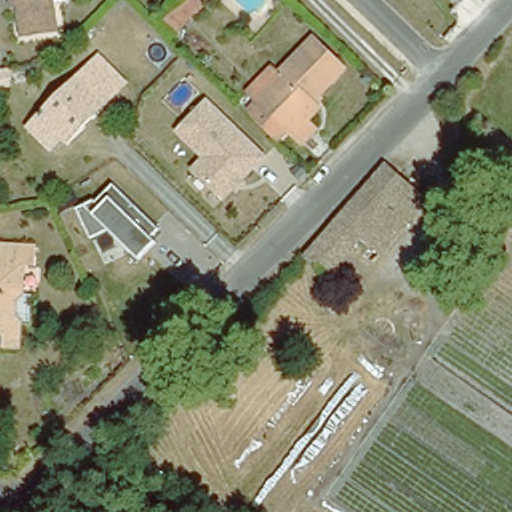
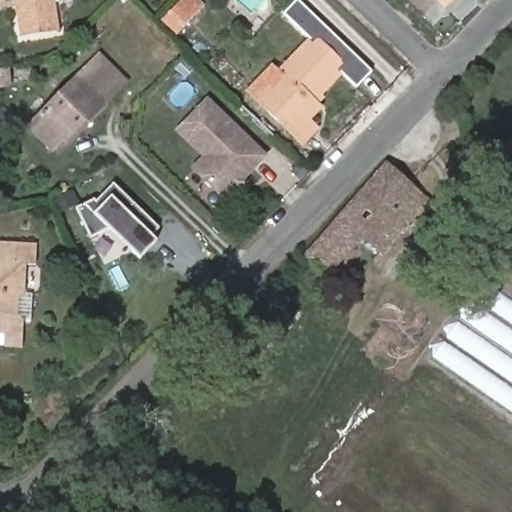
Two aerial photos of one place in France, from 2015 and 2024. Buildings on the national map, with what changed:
unchanged [(55,4),(59,31),(21,37),(16,6),(0,9),(0,0),(69,0),(70,2),(55,4)]
new [(439,0),(448,0),(443,5),(439,0)]
unchanged [(181,5),(196,19),(193,23),(179,37),(164,22),(178,8),(181,5)]
unchanged [(278,132),(270,124),(254,109),(265,97),(260,93),(285,67),(282,65),(316,30),(348,61),(322,88),(327,93),(321,100),(322,101),(311,113),(320,122),(305,137),(295,128),(285,139),(278,132)]
unchanged [(96,56),(124,82),(106,101),(79,75),(96,56)]
unchanged [(106,101),(68,142),(64,137),(54,149),(30,127),(79,75),(106,101)]
unchanged [(225,202),(193,170),(205,157),(177,131),(209,97),(270,156),(225,202)]
unchanged [(427,201),(380,254),(361,237),(328,275),(306,255),(387,164),(427,201)]
unchanged [(154,237),(159,244),(141,261),(110,230),(91,241),(77,206),(99,198),(115,183),(162,230),(154,237)]
unchanged [(24,318),(22,345),(14,345),(0,344),(0,244),(37,246),(36,262),(28,262),(26,295),(32,295),(31,318),(24,318)]
new [(512,304),(512,413),(433,358),(483,285),(512,304)]
unchanged [(340,287),(346,292),(331,310),(317,297),(327,286),(335,292),(340,287)]

